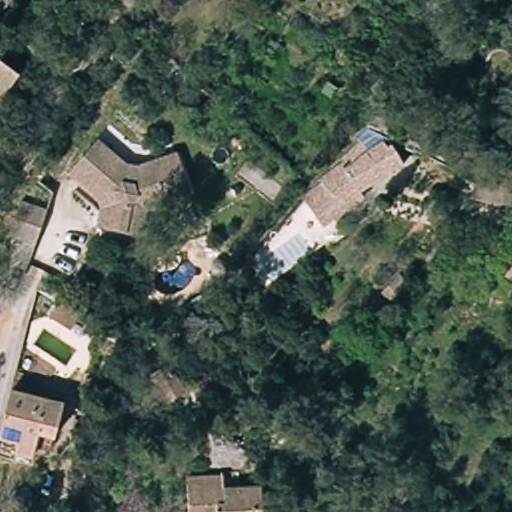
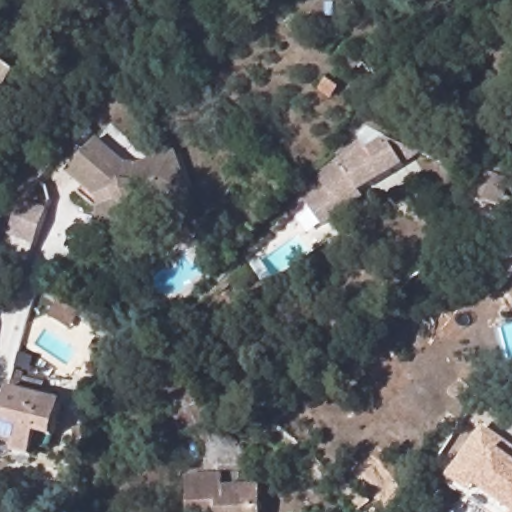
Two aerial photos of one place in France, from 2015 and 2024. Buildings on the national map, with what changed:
unchanged [(0,6),(0,0),(7,0),(0,6)]
unchanged [(16,81),(0,104),(0,68),(16,81)]
unchanged [(308,195),(316,185),(326,175),(347,158),(347,155),(367,136),(365,134),(375,124),(393,134),(411,160),(348,202),(326,222),(308,195)]
unchanged [(92,144),(124,167),(130,169),(174,154),(189,198),(145,214),(138,238),(93,225),(97,208),(94,197),(85,190),(67,174),(92,144)]
unchanged [(466,199),(477,172),(478,172),(488,176),(505,184),(497,208),(466,199)]
unchanged [(512,211),(511,211),(502,210),(508,185),(512,186),(512,211)]
unchanged [(8,200),(35,209),(23,246),(0,237),(0,226),(8,200)]
unchanged [(512,287),(511,287),(485,267),(501,249),(512,257),(512,287)]
unchanged [(82,316),(71,331),(51,318),(62,300),(82,316)]
unchanged [(171,371),(186,390),(168,404),(152,385),(171,371)]
unchanged [(3,389),(5,386),(55,398),(46,436),(30,431),(25,455),(6,449),(7,441),(0,438),(0,402),(3,389)]
new [(470,495),(446,478),(484,425),(512,446),(512,512),(506,512),(472,487),(470,495)]
unchanged [(190,497),(191,463),(216,464),(217,471),(256,470),(258,512),(215,512),(215,509),(203,509),(202,498),(190,497)]

